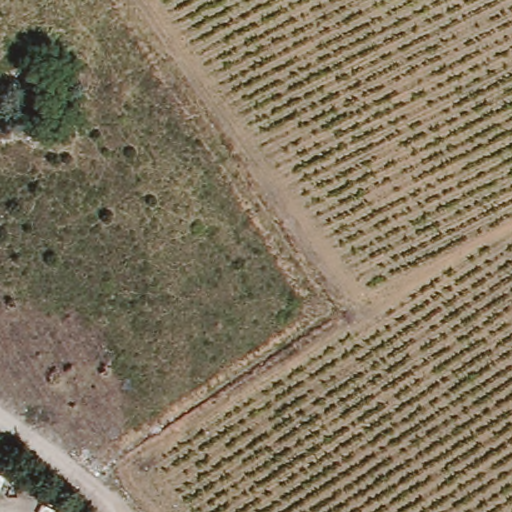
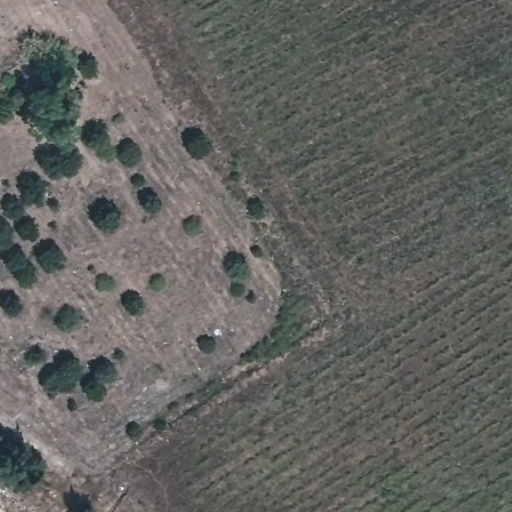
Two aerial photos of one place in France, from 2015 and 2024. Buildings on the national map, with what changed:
unchanged [(51,65),(20,86),(8,68),(40,47),(51,65)]

